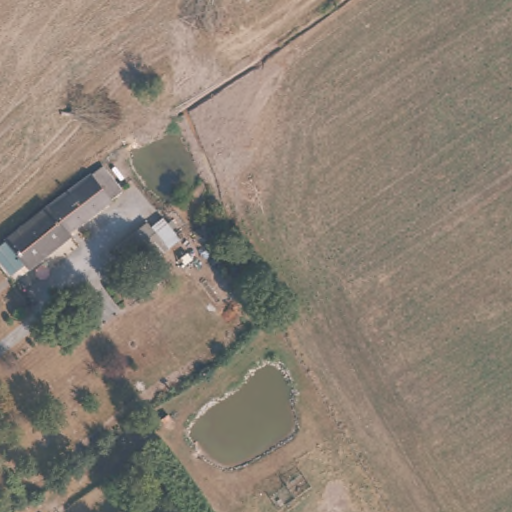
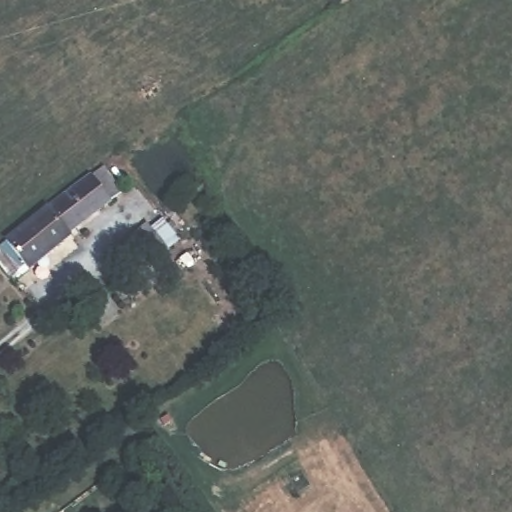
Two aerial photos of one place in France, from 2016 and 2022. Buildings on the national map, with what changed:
unchanged [(106,167),(122,192),(71,228),(75,235),(29,267),(14,240),(10,232),(106,167)]
unchanged [(145,235),(142,232),(164,216),(169,223),(176,232),(166,240),(140,259),(130,246),(145,235)]
unchanged [(27,503),(16,511),(0,487),(0,480),(7,474),(27,503)]

